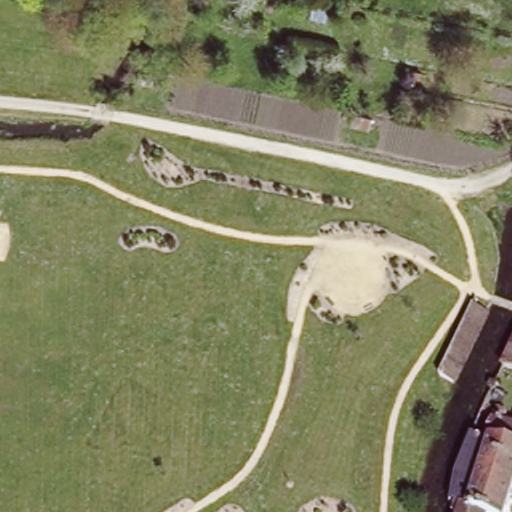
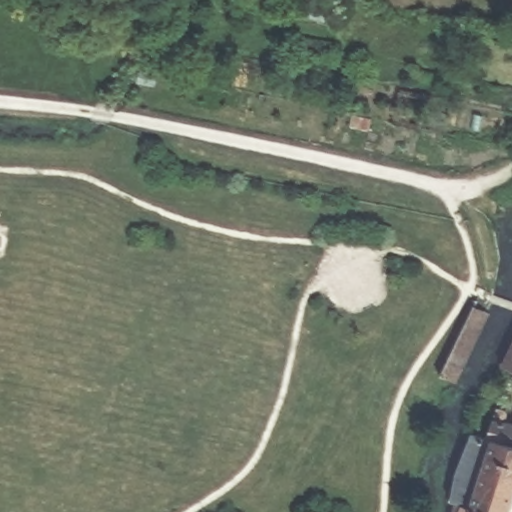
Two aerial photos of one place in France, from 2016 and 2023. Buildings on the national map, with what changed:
unchanged [(460,377),(447,371),(478,303),(492,308),(460,377)]
unchanged [(506,364),(512,353),(512,367),(506,364)]
unchanged [(497,404),(508,408),(505,419),(512,421),(512,442),(495,438),(488,437),(497,404)]
unchanged [(468,440),(472,433),(488,437),(495,438),(482,489),(458,483),(468,440)]
unchanged [(458,483),(482,489),(495,438),(512,442),(512,510),(512,512),(451,512),(458,483)]

